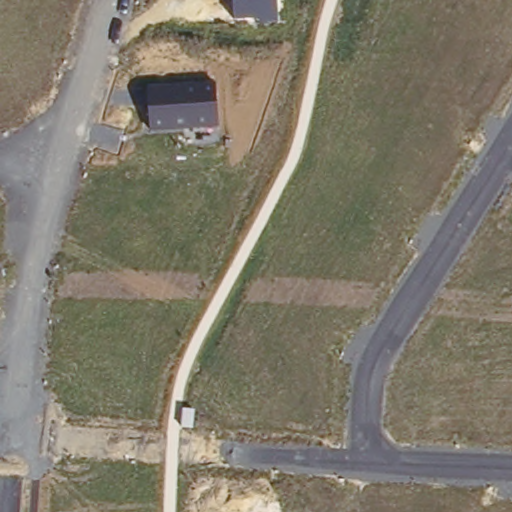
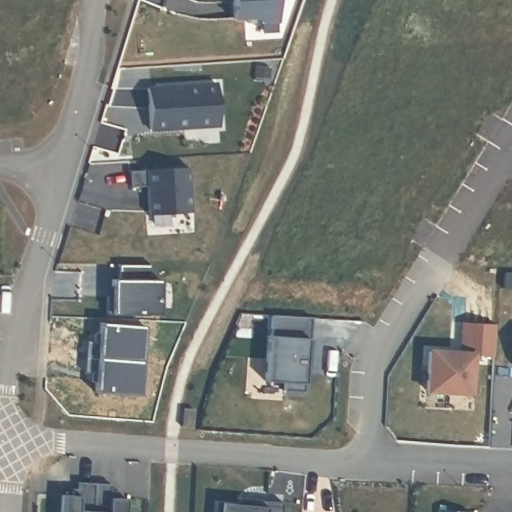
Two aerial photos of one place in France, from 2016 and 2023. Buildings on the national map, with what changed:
unchanged [(257,23),(257,20),(235,21),(233,0),(277,0),(277,22),(257,23)]
unchanged [(220,127),(151,134),(147,89),(215,84),(220,127)]
new [(180,159),(185,204),(142,208),(140,179),(122,180),(121,164),(180,159)]
new [(150,269),(150,284),(160,284),(159,320),(145,325),(137,405),(93,403),(94,378),(83,377),(86,344),(96,343),(97,325),(111,325),(111,300),(111,283),(117,283),(118,268),(150,269)]
new [(280,376),(261,375),(263,330),(265,330),(266,310),(306,312),(305,332),(308,333),(307,351),(302,351),(300,386),(280,385),(280,376)]
new [(488,350),(466,348),(465,386),(421,384),(422,345),(455,346),(456,315),(489,317),(488,350)]
new [(508,360),(510,322),(512,322),(512,364),(508,360)]
new [(302,351),(307,351),(306,363),(301,363),(302,351)]
new [(178,401),(190,401),(189,420),(178,420),(178,401)]
new [(57,503),(73,504),(74,490),(106,491),(105,505),(121,505),(121,512),(57,512),(57,503)]
new [(211,500),(243,502),(244,495),(278,498),(277,512),(210,512),(211,500)]
new [(232,495),(244,495),(243,502),(232,502),(232,495)]
new [(434,502),(465,504),(464,512),(433,512),(434,502)]

